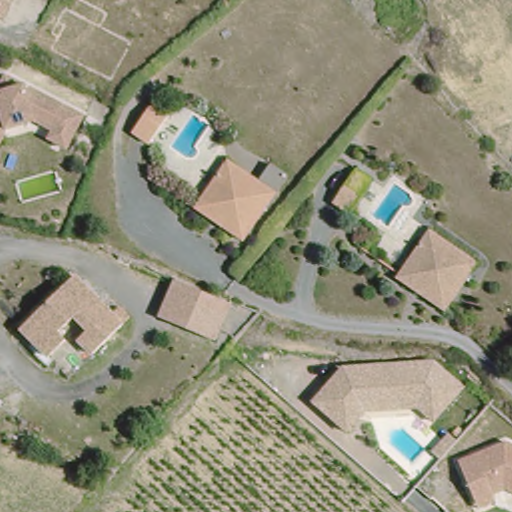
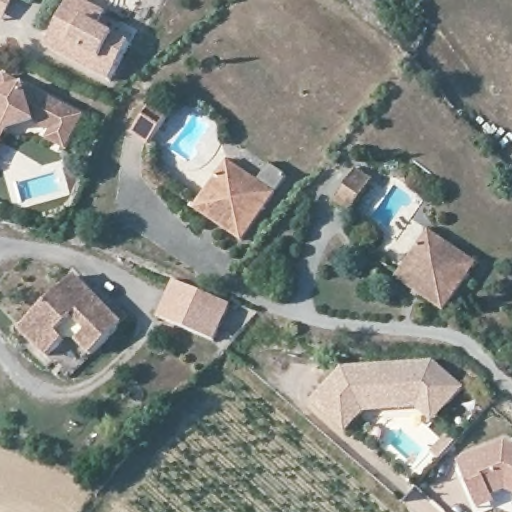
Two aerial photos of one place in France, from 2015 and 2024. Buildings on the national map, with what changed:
unchanged [(0,16),(0,0),(8,0),(5,7),(0,16)]
new [(78,0),(106,14),(100,28),(130,44),(110,82),(45,48),(70,0),(78,0)]
unchanged [(89,116),(73,148),(48,141),(52,131),(32,120),(10,131),(0,149),(0,86),(6,73),(89,116)]
unchanged [(142,113),(161,126),(140,157),(121,145),(142,113)]
unchanged [(231,160),(277,193),(270,203),(242,243),(196,208),(198,206),(224,171),(231,160)]
unchanged [(349,187),(365,199),(343,227),(327,216),(349,187)]
unchanged [(433,230),(478,260),(468,273),(441,309),(397,279),(399,276),(424,244),(433,230)]
unchanged [(61,369),(22,324),(78,274),(113,315),(121,308),(131,320),(91,354),(67,376),(61,369)]
unchanged [(231,305),(218,340),(158,317),(174,280),(231,305)]
unchanged [(311,400),(342,366),(435,360),(466,388),(435,422),(418,408),(365,412),(347,431),(311,400)]
unchanged [(460,460),(505,441),(512,444),(512,493),(505,490),(476,502),(460,460)]

